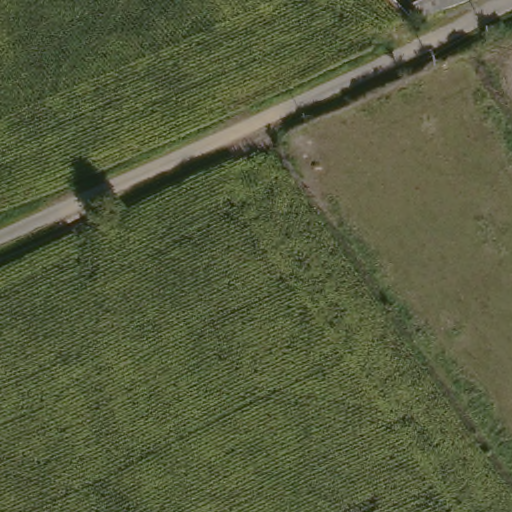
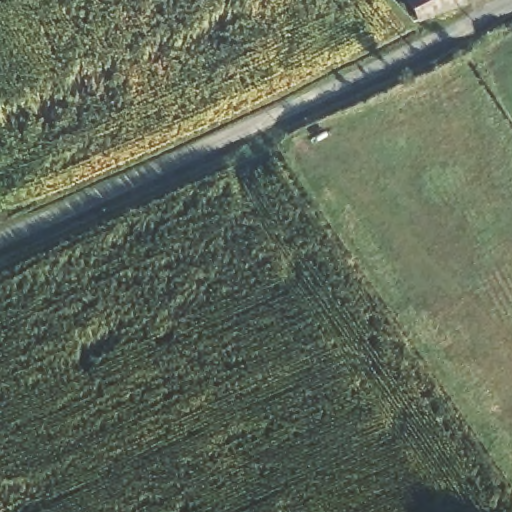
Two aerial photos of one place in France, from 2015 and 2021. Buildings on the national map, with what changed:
unchanged [(410,0),(474,0),(423,21),(410,0)]

